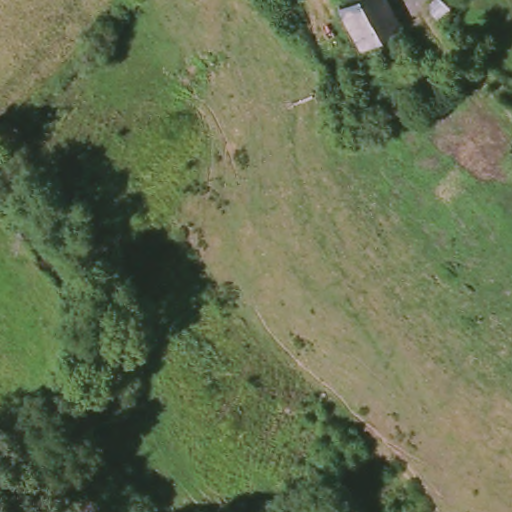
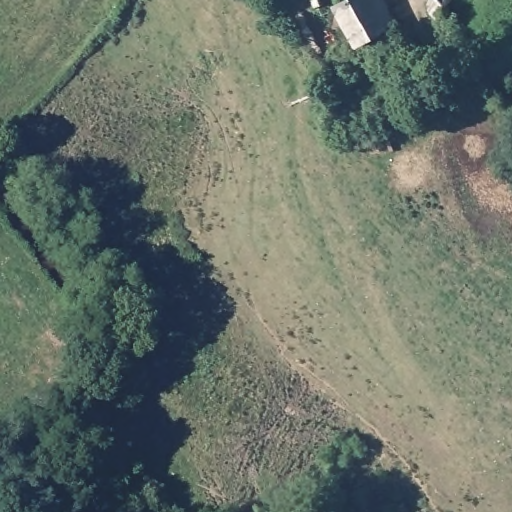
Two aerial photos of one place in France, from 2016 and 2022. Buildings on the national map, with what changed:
unchanged [(405,31),(362,52),(341,11),(362,0),(387,0),(405,31)]
unchanged [(453,4),(434,18),(426,12),(429,1),(430,0),(451,0),(453,4)]

